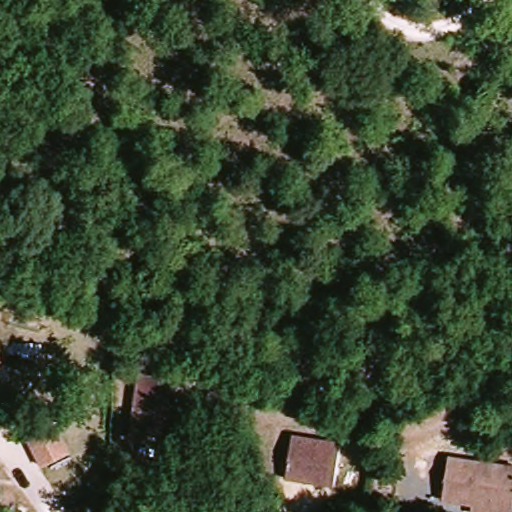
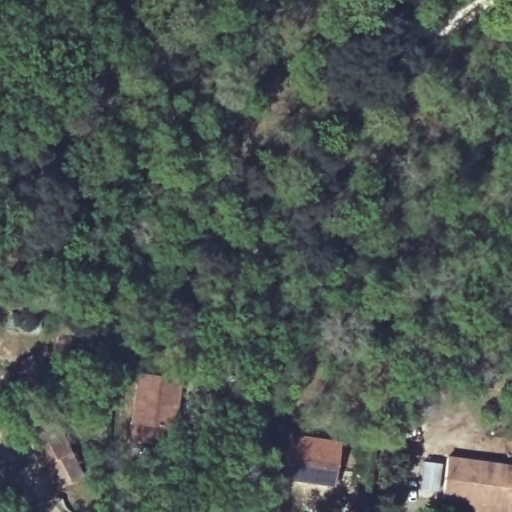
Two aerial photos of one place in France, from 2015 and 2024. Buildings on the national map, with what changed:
unchanged [(134,426),(137,412),(142,373),(181,378),(174,429),(162,428),(161,442),(132,439),(134,426)]
unchanged [(66,457),(38,470),(23,439),(50,425),(66,457)]
unchanged [(339,443),(332,488),(281,480),(287,435),(339,443)]
unchanged [(445,507),(450,463),(512,471),(512,512),(475,512),(475,510),(445,507)]
unchanged [(444,469),(444,486),(415,486),(415,468),(444,469)]

